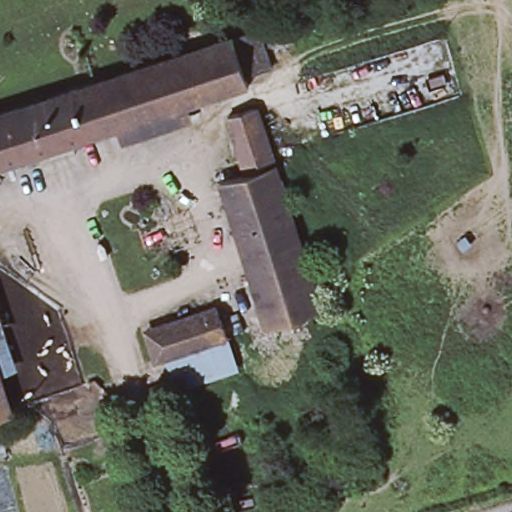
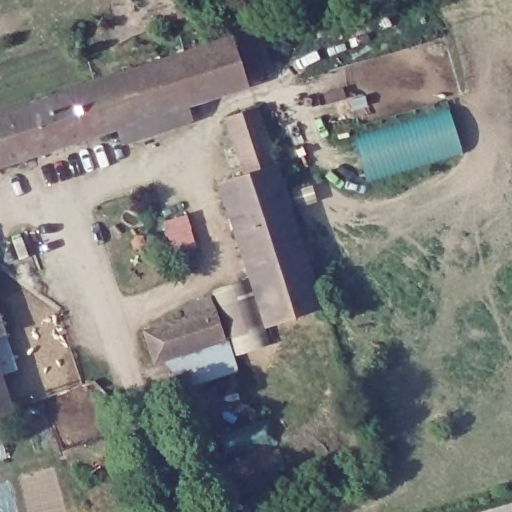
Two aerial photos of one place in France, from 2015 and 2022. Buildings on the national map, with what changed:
unchanged [(259,32),(271,71),(246,78),(234,39),(259,32)]
unchanged [(111,76),(128,71),(233,37),(234,39),(246,78),(248,87),(126,126),(118,129),(24,158),(8,109),(104,79),(111,76)]
new [(449,105),(464,154),(368,182),(355,135),(449,105)]
unchanged [(256,108),(274,164),(246,174),(227,117),(256,108)]
unchanged [(24,158),(0,166),(0,112),(8,109),(24,158)]
unchanged [(221,181),(246,174),(274,164),(321,308),(269,325),(259,294),(221,181)]
new [(188,215),(196,249),(171,257),(163,224),(188,215)]
unchanged [(178,389),(167,359),(155,363),(145,331),(163,325),(259,294),(269,325),(229,339),(241,371),(178,389)]
unchanged [(0,336),(0,311),(8,333),(0,336)]
unchanged [(0,416),(0,377),(11,412),(0,416)]

